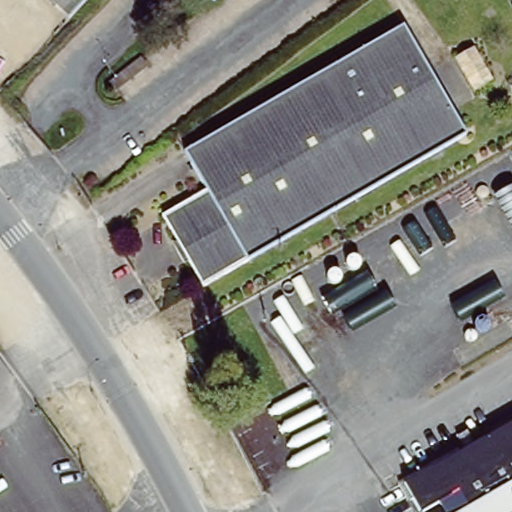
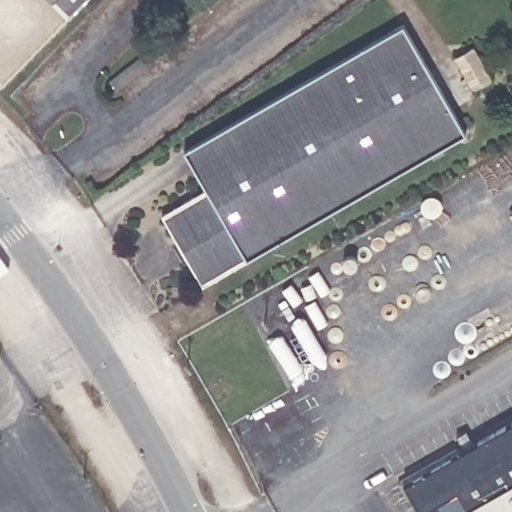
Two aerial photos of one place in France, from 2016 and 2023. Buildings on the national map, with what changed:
unchanged [(88,0),(70,19),(50,0),(88,0)]
unchanged [(211,199),(185,157),(402,23),(465,131),(251,263),(211,199)]
unchanged [(472,44),(492,77),(475,89),(463,70),(462,66),(462,61),(458,55),(460,49),(460,53),(461,57),(472,44)]
unchanged [(216,285),(175,222),(211,199),(251,263),(216,285)]
unchanged [(435,508),(430,512),(421,512),(416,502),(410,506),(401,491),(457,451),(461,456),(512,420),(512,512),(437,512),(435,508)]

